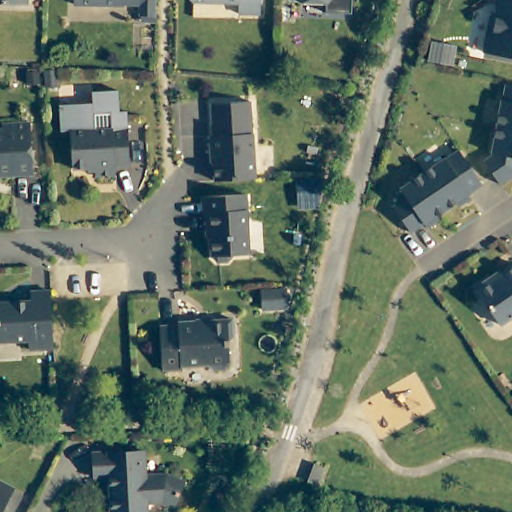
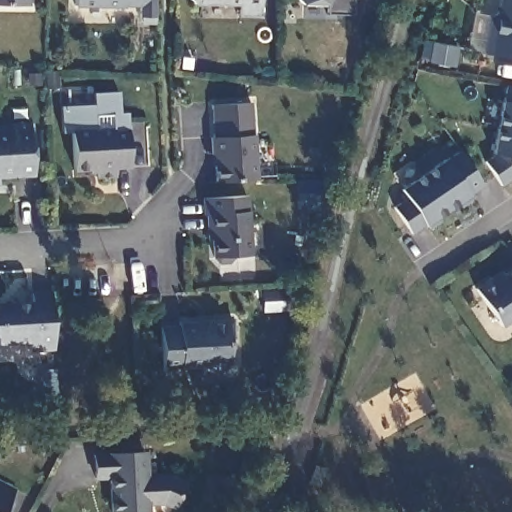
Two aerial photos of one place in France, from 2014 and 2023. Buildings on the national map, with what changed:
unchanged [(30,7),(0,6),(0,0),(30,0),(30,7)]
unchanged [(137,23),(121,23),(121,17),(121,6),(56,6),(56,0),(137,0),(137,17),(137,22),(137,23)]
unchanged [(257,16),(237,16),(236,5),(191,4),(187,0),(257,0),(257,16)]
unchanged [(322,1),(297,1),(296,0),(324,0),(322,1)]
unchanged [(485,56),(493,19),(499,15),(502,0),(512,0),(512,61),(485,56)]
unchanged [(512,89),(512,179),(501,187),(485,163),(492,158),(493,156),(492,155),(502,103),(503,103),(507,87),(512,89)]
unchanged [(122,169),(122,177),(104,178),(103,170),(81,171),(78,134),(69,134),(67,108),(100,106),(99,94),(125,93),(126,114),(134,114),(137,168),(122,169)]
unchanged [(254,179),(213,182),(211,154),(209,154),(207,138),(211,138),(208,104),(250,103),(254,179)]
unchanged [(0,178),(0,126),(29,124),(32,176),(0,178)]
unchanged [(482,187),(470,196),(470,197),(426,226),(425,226),(412,234),(393,208),(407,199),(401,190),(446,160),(446,161),(460,152),(482,187)]
unchanged [(247,256),(231,256),(224,262),(216,263),(211,257),(209,231),(205,231),(205,215),(201,215),(201,197),(243,195),(247,256)]
unchanged [(505,324),(480,287),(496,277),(498,281),(512,272),(512,320),(505,324)]
unchanged [(27,352),(26,343),(0,344),(0,305),(29,303),(29,294),(48,294),(51,352),(27,352)]
unchanged [(232,338),(226,344),(228,364),(222,370),(210,371),(204,367),(180,366),(180,371),(160,371),(157,326),(175,325),(176,321),(230,319),(232,338)]
unchanged [(163,475),(182,483),(171,507),(160,501),(143,501),(143,511),(134,512),(107,512),(106,475),(90,476),(89,452),(142,450),(142,475),(163,475)]
unchanged [(1,512),(0,512),(0,493),(9,497),(1,512)]

